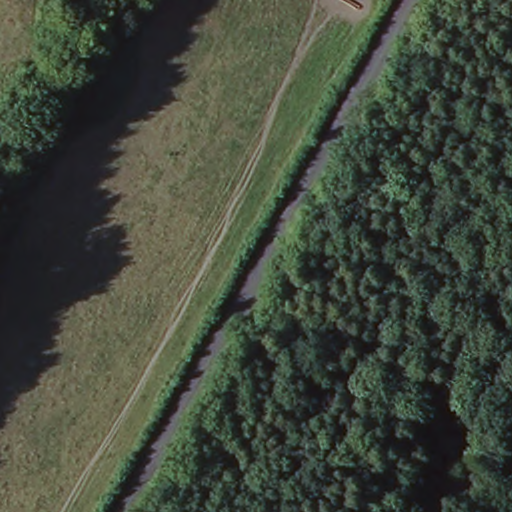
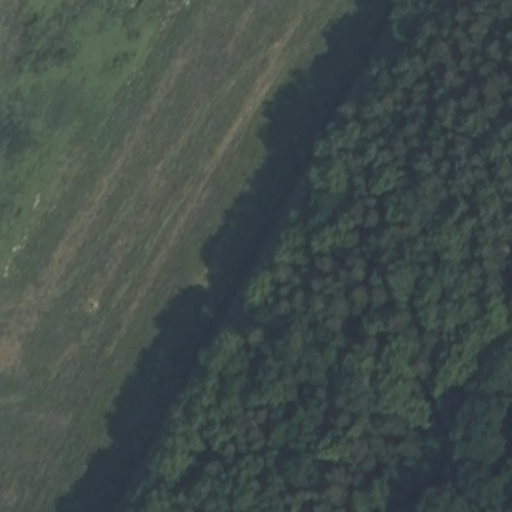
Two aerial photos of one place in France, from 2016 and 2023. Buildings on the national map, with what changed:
[]

